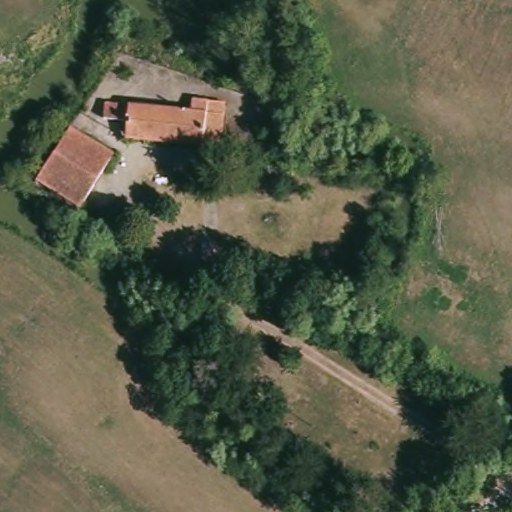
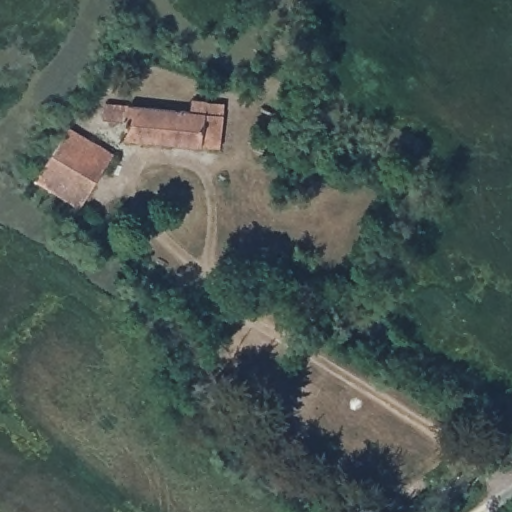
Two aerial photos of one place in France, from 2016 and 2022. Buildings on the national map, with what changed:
unchanged [(109,121),(109,104),(193,111),(194,102),(214,103),(214,113),(227,114),(225,147),(132,142),(134,123),(109,121)]
unchanged [(111,153),(81,208),(34,180),(67,128),(111,153)]

